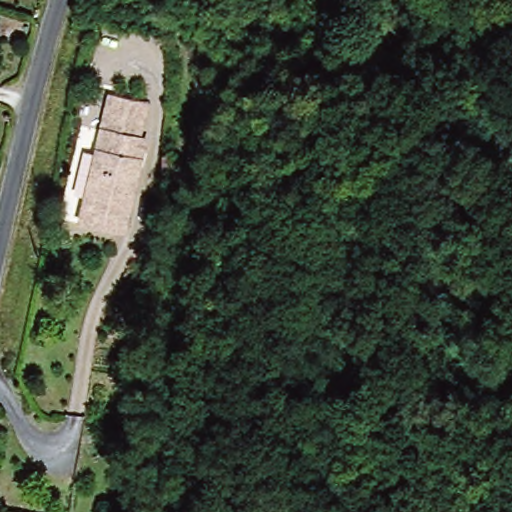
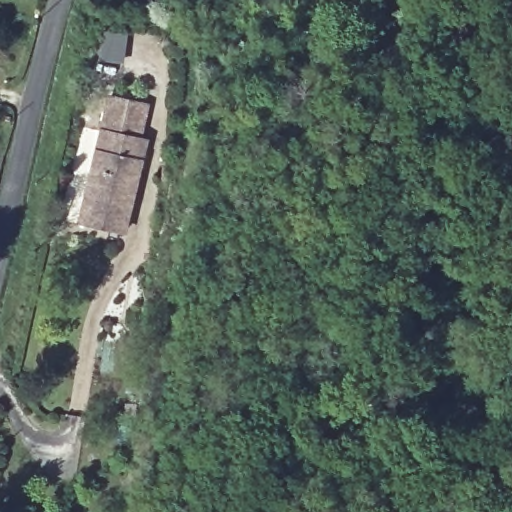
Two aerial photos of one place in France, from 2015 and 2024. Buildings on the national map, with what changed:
unchanged [(144,139),(151,141),(129,232),(84,221),(116,94),(152,104),(144,139)]
unchanged [(169,160),(178,160),(177,179),(168,179),(169,160)]

